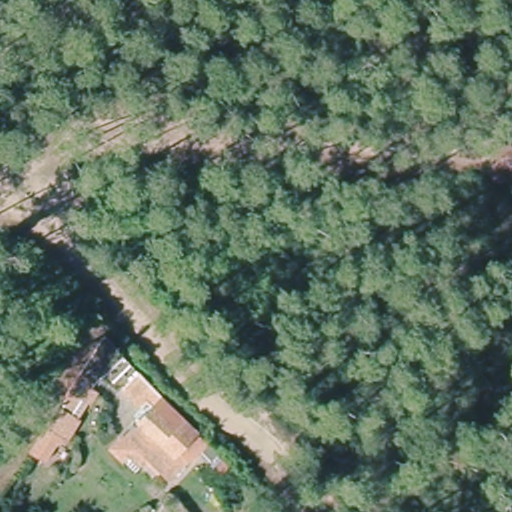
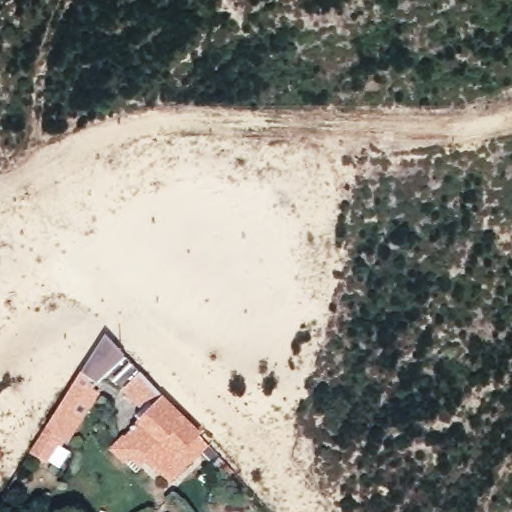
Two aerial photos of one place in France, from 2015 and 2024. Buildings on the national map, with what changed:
unchanged [(204,445),(165,480),(132,453),(122,462),(107,450),(146,415),(108,376),(53,459),(32,448),(105,335),(204,445)]

